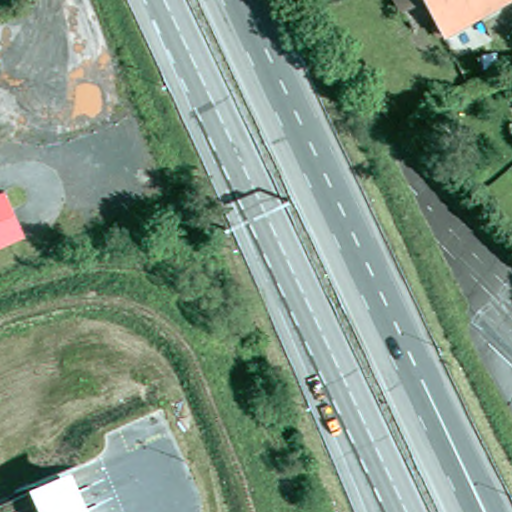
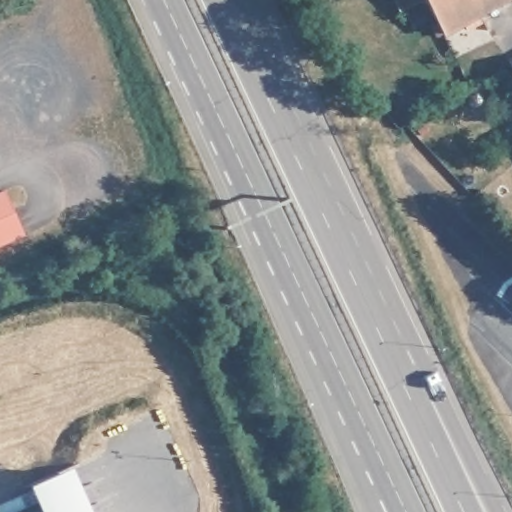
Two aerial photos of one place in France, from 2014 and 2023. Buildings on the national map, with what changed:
unchanged [(426,0),(435,16),(416,27),(401,0),(426,0)]
unchanged [(435,16),(426,0),(505,0),(445,33),(435,16)]
unchanged [(28,238),(0,249),(0,190),(7,187),(28,238)]
unchanged [(72,471),(90,512),(40,512),(30,487),(72,471)]

